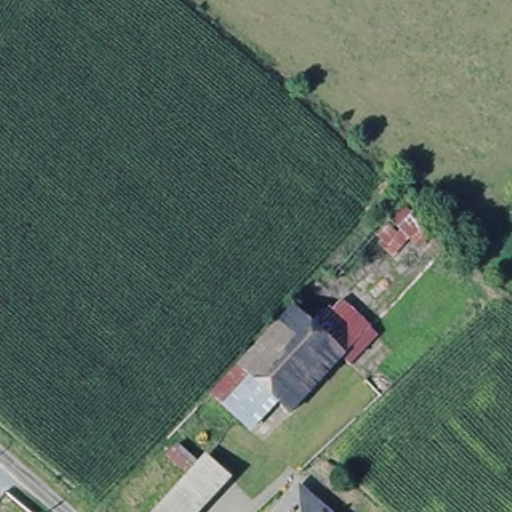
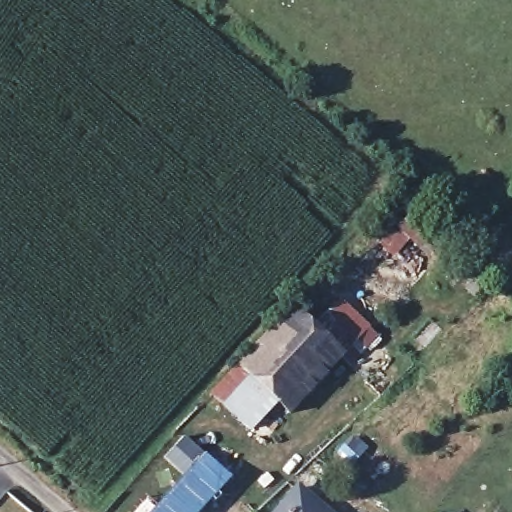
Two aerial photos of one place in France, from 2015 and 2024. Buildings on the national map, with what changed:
unchanged [(433,222),(398,259),(370,235),(404,196),(433,222)]
unchanged [(289,308),(310,327),(336,299),(373,333),(347,363),(339,356),(288,414),(273,402),(248,428),(209,394),(289,308)]
unchanged [(168,458),(178,446),(202,464),(208,457),(229,476),(227,487),(204,512),(155,512),(189,475),(168,458)]
unchanged [(276,512),(293,491),(318,512),(276,512)]

